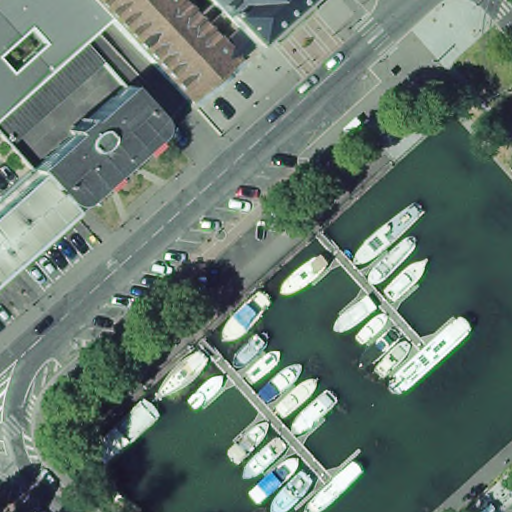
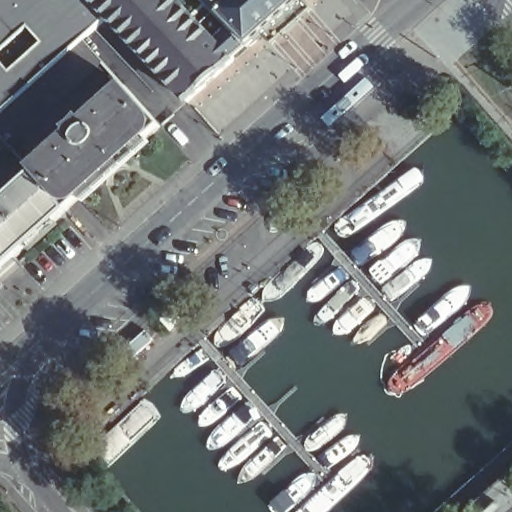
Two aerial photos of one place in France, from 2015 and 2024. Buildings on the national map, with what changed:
unchanged [(28,119),(16,130),(5,140),(0,135),(0,0),(92,0),(104,13),(79,35),(98,57),(86,67),(75,78),(63,89),(51,99),(40,109),(28,119)]
unchanged [(212,38),(213,40),(227,55),(229,56),(183,97),(104,13),(92,0),(176,0),(212,38)]
unchanged [(246,41),(245,40),(227,55),(213,40),(212,38),(228,22),(206,0),(292,0),(246,41)]
unchanged [(120,81),(147,111),(156,122),(63,205),(30,168),(26,164),(120,81)]
unchanged [(30,168),(63,205),(0,261),(0,194),(30,168)]
unchanged [(320,191),(302,207),(291,195),(309,180),(320,191)]

